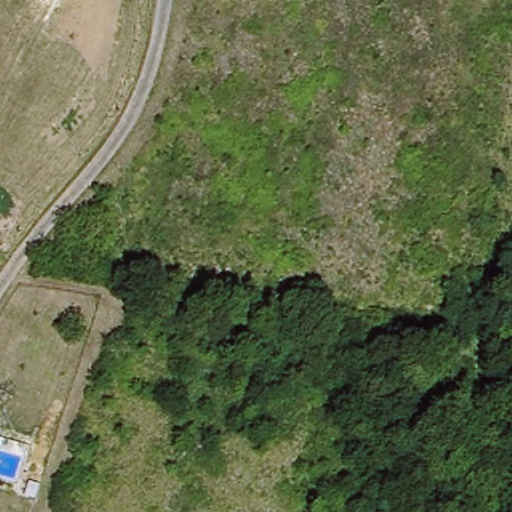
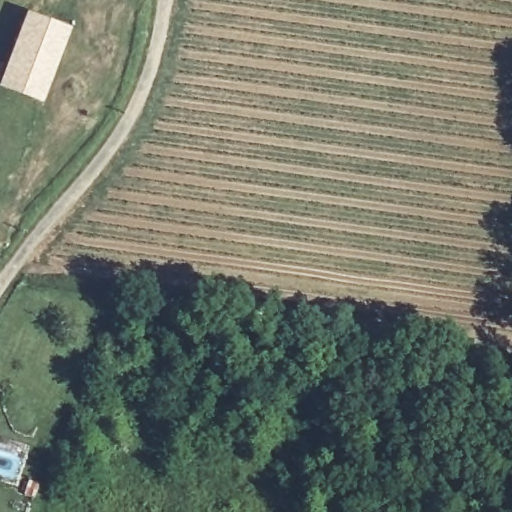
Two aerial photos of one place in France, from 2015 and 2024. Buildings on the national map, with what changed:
new [(69,27),(39,104),(0,88),(0,69),(23,9),(69,27)]

